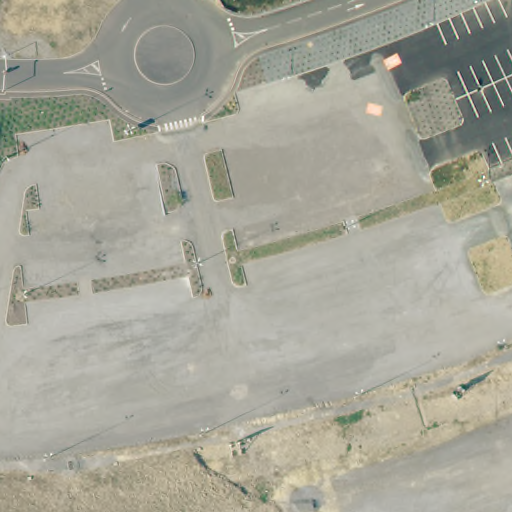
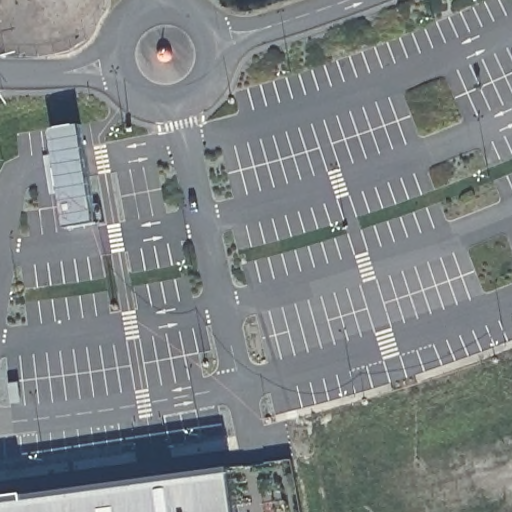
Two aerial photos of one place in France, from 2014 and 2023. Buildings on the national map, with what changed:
new [(231,469),(237,512),(0,512),(0,499),(27,495),(231,469)]

